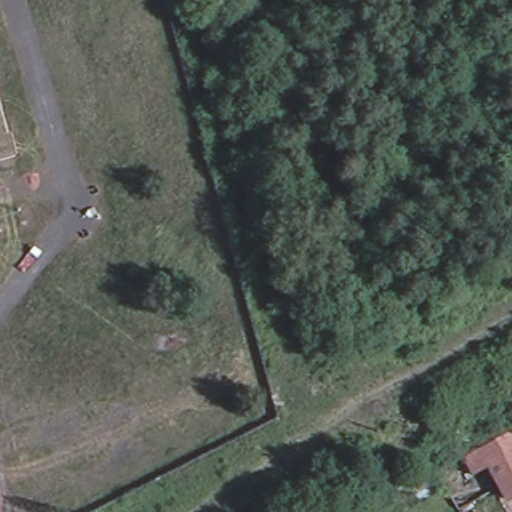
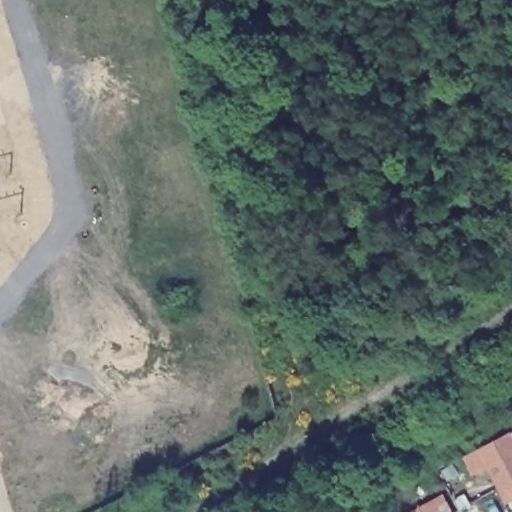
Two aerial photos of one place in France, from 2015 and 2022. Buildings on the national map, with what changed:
unchanged [(472,477),(462,458),(512,431),(512,474),(497,482),(490,468),(472,477)]
unchanged [(449,491),(459,512),(411,512),(449,491)]

